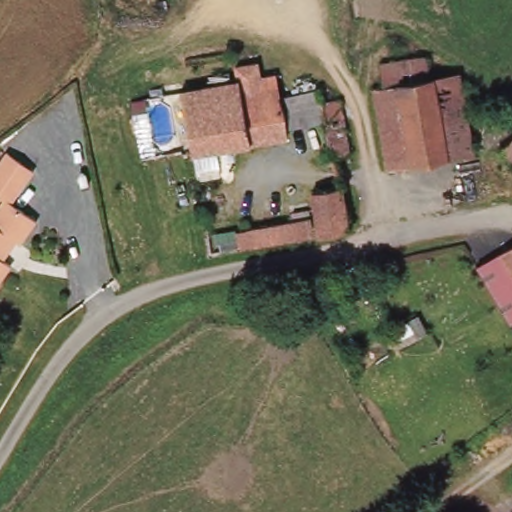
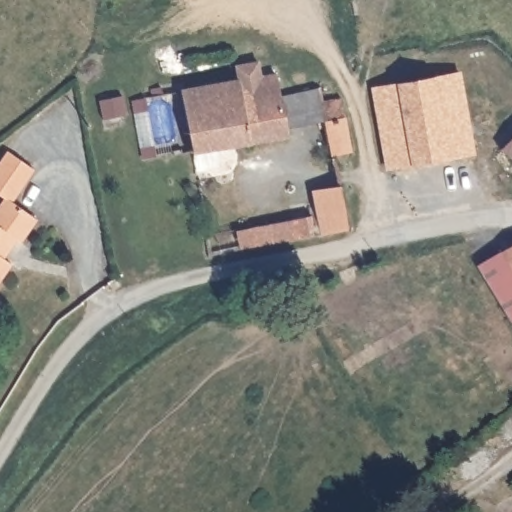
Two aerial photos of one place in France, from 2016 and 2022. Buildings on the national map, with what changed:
unchanged [(458,69),(476,150),(391,165),(374,84),(458,69)]
unchanged [(285,129),(190,147),(179,88),(238,76),(275,70),(279,90),(285,129)]
unchanged [(308,128),(303,106),(323,103),(328,125),(308,128)]
unchanged [(334,117),(339,121),(341,129),(345,130),(349,130),(355,161),(340,164),(337,165),(328,125),(330,119),(334,117)]
unchanged [(512,153),(506,149),(512,142),(512,153)]
unchanged [(8,153),(33,174),(8,204),(32,223),(17,244),(12,240),(0,256),(0,202),(1,200),(0,198),(0,163),(8,153)]
unchanged [(206,233),(316,207),(316,180),(342,178),(348,222),(331,226),(210,256),(206,233)]
unchanged [(512,243),(512,257),(506,247),(512,243)]
unchanged [(512,257),(512,310),(505,314),(475,266),(506,247),(512,257)]
unchanged [(4,267),(0,273),(0,264),(4,267)]

